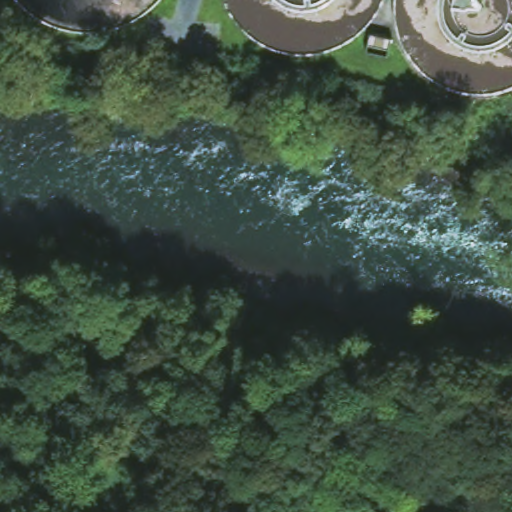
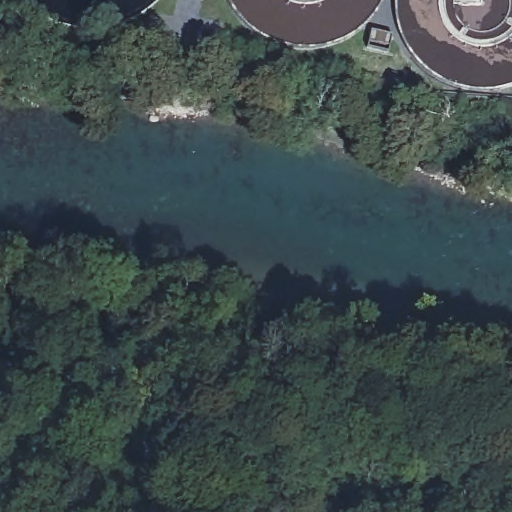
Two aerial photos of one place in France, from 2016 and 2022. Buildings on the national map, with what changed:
unchanged [(369,31),(390,36),(385,59),(363,54),(369,31)]

